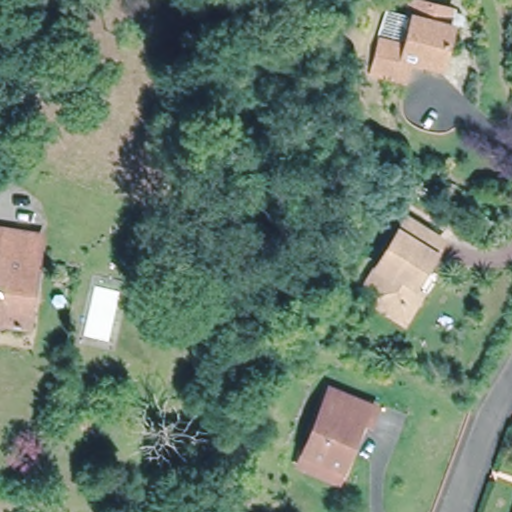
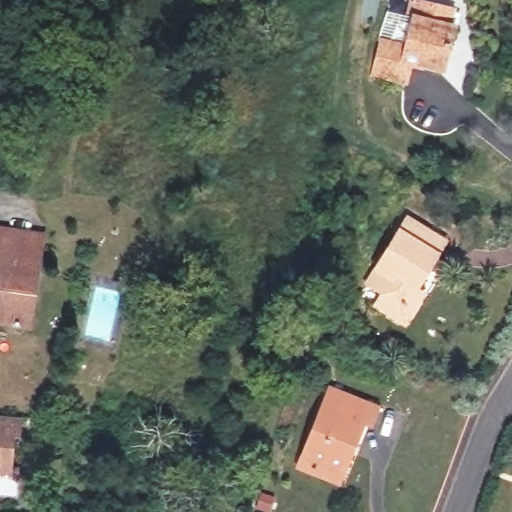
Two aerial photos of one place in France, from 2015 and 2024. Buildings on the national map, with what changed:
unchanged [(410,66),(405,85),(375,78),(383,46),(378,45),(385,15),(407,21),(412,3),(452,13),(447,30),(452,31),(442,74),(410,66)]
unchanged [(377,305),(385,293),(368,283),(407,218),(443,240),(416,286),(424,291),(412,310),(406,322),(377,305)]
unchanged [(26,326),(0,321),(0,228),(39,234),(26,326)]
unchanged [(299,460),(304,448),(330,384),(376,402),(368,420),(362,417),(343,464),(338,476),(299,460)]
new [(14,436),(12,472),(0,471),(0,415),(20,417),(20,437),(14,436)]

